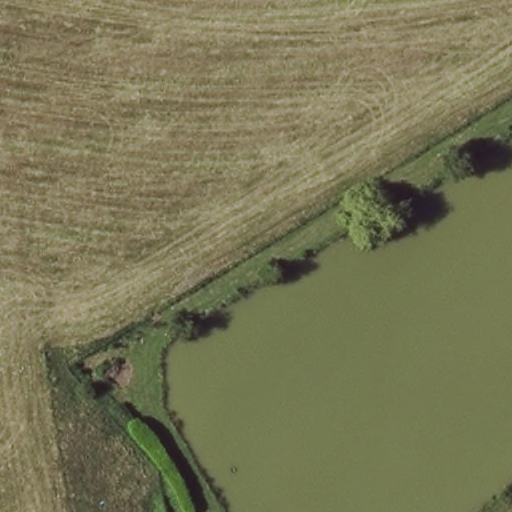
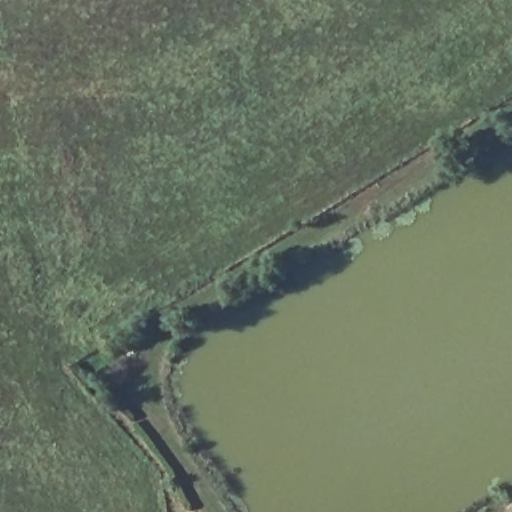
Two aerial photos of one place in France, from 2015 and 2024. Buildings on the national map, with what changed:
[]

